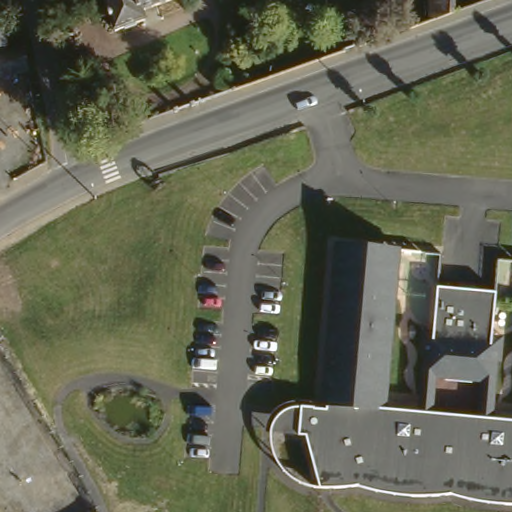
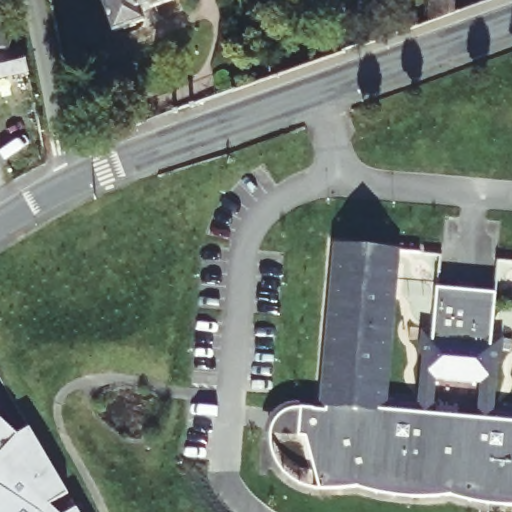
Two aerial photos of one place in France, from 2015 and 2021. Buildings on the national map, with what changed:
unchanged [(145,21),(115,32),(104,0),(174,0),(141,12),(145,21)]
unchanged [(429,20),(430,0),(458,0),(458,10),(429,20)]
unchanged [(6,52),(23,49),(28,72),(0,79),(0,26),(4,47),(6,52)]
unchanged [(504,505),(498,480),(483,486),(470,490),(455,492),(438,496),(424,496),(410,495),(403,472),(398,475),(385,479),(371,482),(354,487),(345,487),(331,487),(318,487),(297,482),(281,470),(274,462),(271,452),(268,442),(268,431),(270,422),(274,416),(278,412),(285,407),(293,405),(298,406),(324,408),(324,403),(318,403),(332,242),(382,247),(381,267),(396,268),(383,408),(415,412),(422,332),(431,333),(434,286),(492,291),(489,337),(498,337),(491,417),(512,419),(512,504),(504,505)]
new [(31,428),(68,493),(49,504),(58,512),(0,512),(0,420),(18,436),(31,428)]
new [(78,507),(80,512),(71,512),(78,507)]

